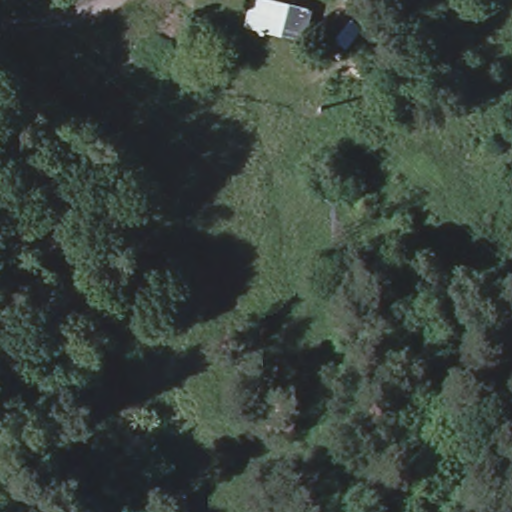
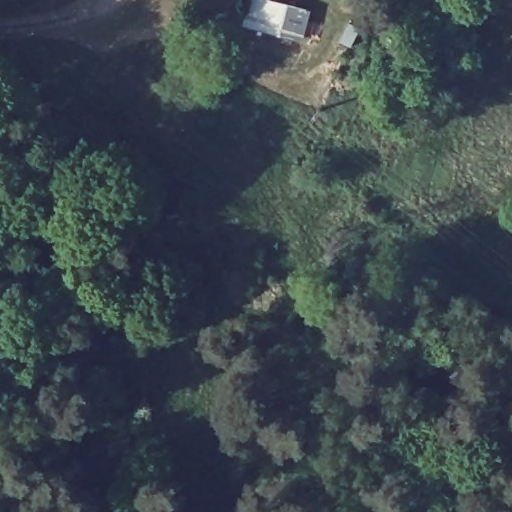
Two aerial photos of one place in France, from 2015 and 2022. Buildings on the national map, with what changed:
unchanged [(257,0),(267,0),(311,7),(299,34),(250,25),(257,0)]

